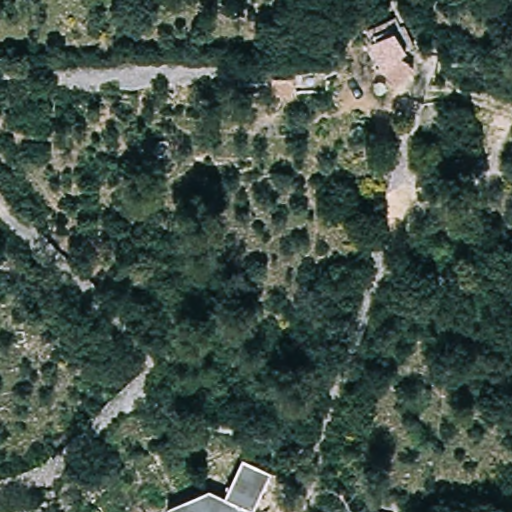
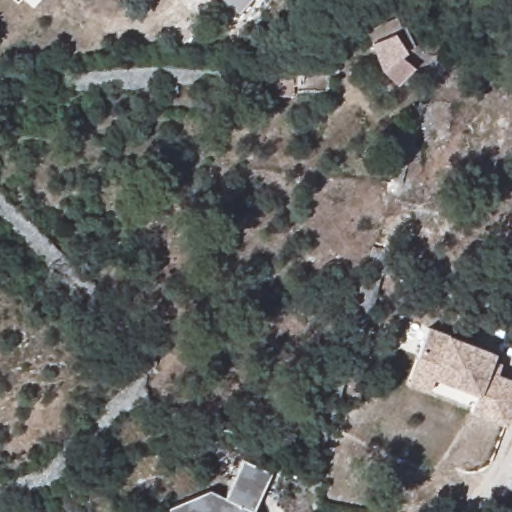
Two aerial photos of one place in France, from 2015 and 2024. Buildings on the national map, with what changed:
new [(220,0),(250,0),(237,15),(220,0)]
unchanged [(401,32),(410,48),(397,59),(408,70),(395,87),(381,73),(378,75),(366,46),(401,32)]
unchanged [(299,76),(328,74),(330,89),(327,95),(300,94),(299,76)]
unchanged [(275,99),(275,81),(295,83),(295,100),(275,99)]
new [(492,354),(488,364),(497,368),(493,377),(512,384),(512,402),(503,426),(468,414),(475,395),(431,379),(426,393),(405,386),(415,362),(425,331),(492,354)]
unchanged [(218,492),(230,499),(248,464),(275,479),(257,512),(174,512),(173,509),(218,492)]

